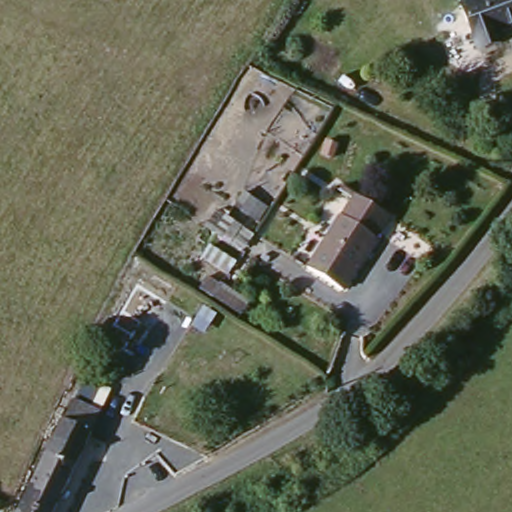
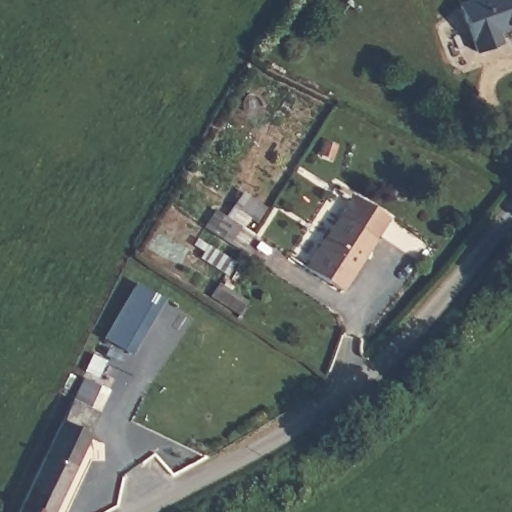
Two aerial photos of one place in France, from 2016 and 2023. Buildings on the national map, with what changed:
unchanged [(462,2),(467,0),(512,0),(512,24),(498,30),(501,40),(477,48),(462,2)]
unchanged [(349,192),(384,214),(337,288),(301,264),(349,192)]
new [(167,303),(130,367),(98,352),(137,286),(167,303)]
unchanged [(92,378),(80,407),(95,414),(48,512),(14,512),(67,401),(82,373),(92,378)]

